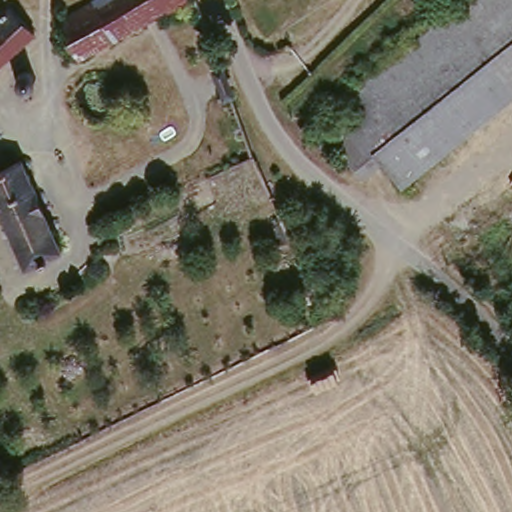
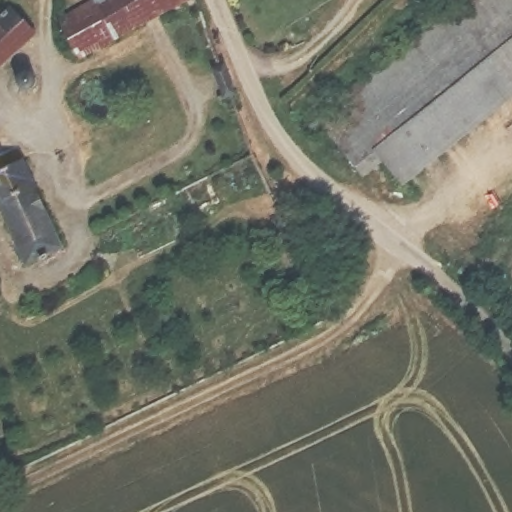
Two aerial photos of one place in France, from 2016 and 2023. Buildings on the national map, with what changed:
unchanged [(91,3),(97,0),(189,0),(112,42),(91,3)]
unchanged [(512,0),(512,120),(504,127),(414,201),(381,160),(362,177),(322,128),(474,0),(512,0)]
unchanged [(78,60),(57,22),(91,3),(112,42),(78,60)]
unchanged [(15,15),(27,27),(38,39),(0,76),(0,28),(15,15)]
unchanged [(16,82),(15,77),(18,72),(22,70),(27,70),(31,73),(34,79),(32,84),(27,87),(21,87),(17,84),(16,82)]
unchanged [(3,176),(25,167),(65,254),(26,272),(21,262),(0,217),(0,169),(3,176)]

